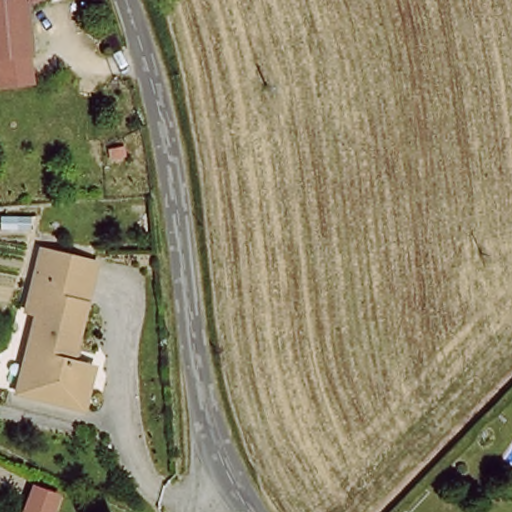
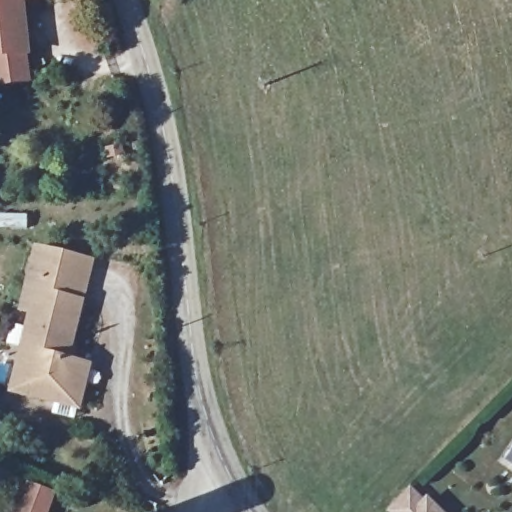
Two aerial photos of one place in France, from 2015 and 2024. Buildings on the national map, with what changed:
unchanged [(26,0),(27,1),(16,4),(20,57),(0,59),(0,0),(26,0)]
unchanged [(26,0),(31,0),(27,1),(26,0)]
unchanged [(35,276),(42,250),(100,266),(99,296),(35,276)]
unchanged [(0,412),(35,276),(99,296),(79,370),(103,375),(93,433),(0,412)]
new [(411,487),(426,500),(428,496),(444,512),(388,512),(411,487)]
unchanged [(54,512),(21,512),(35,488),(59,503),(54,512)]

